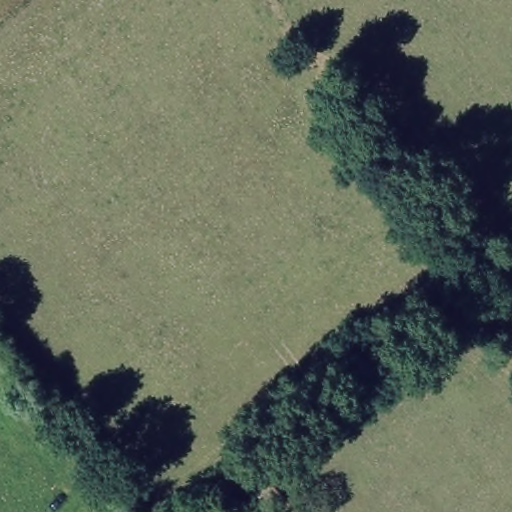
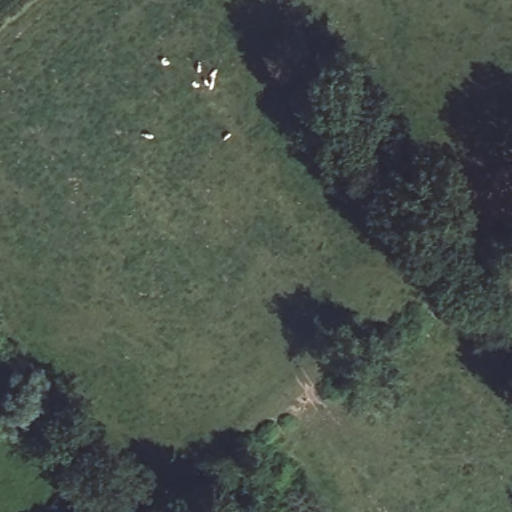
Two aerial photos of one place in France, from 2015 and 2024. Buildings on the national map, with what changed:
unchanged [(221,457),(240,440),(277,487),(260,502),(221,457)]

